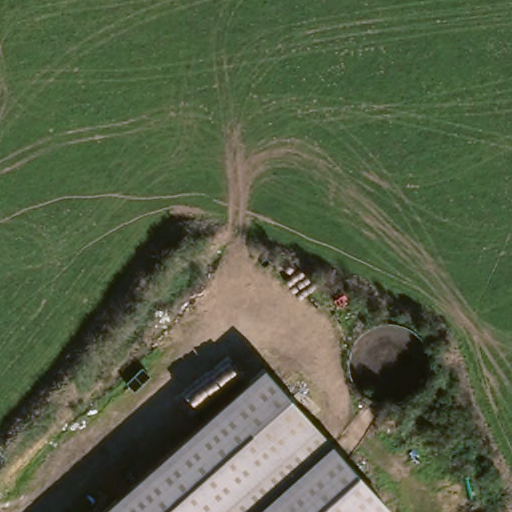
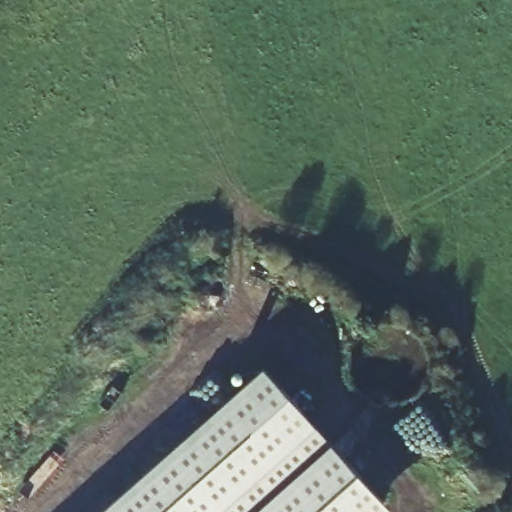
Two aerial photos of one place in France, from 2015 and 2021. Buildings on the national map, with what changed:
unchanged [(331,444),(256,512),(101,512),(263,367),(331,444)]
unchanged [(331,444),(393,512),(256,512),(331,444)]

